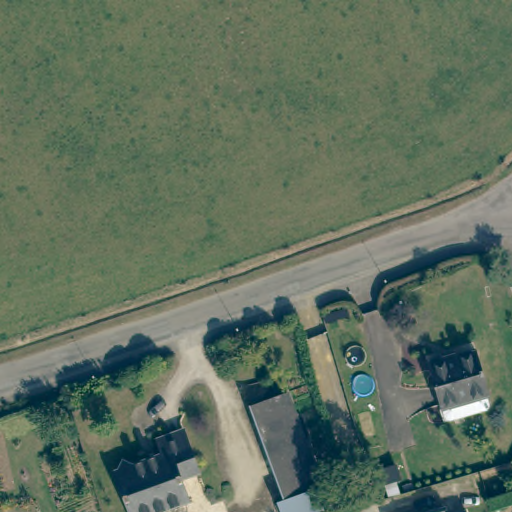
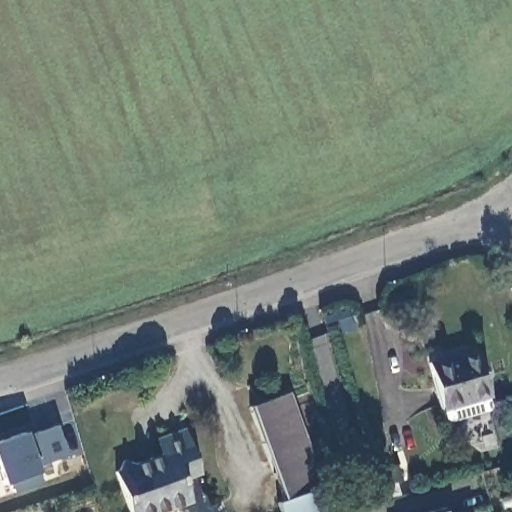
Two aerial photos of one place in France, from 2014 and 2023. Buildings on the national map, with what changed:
unchanged [(489,400),(488,400),(485,402),(452,412),(447,411),(444,410),(443,398),(440,400),(439,397),(434,380),(427,355),(443,351),(444,355),(477,345),(488,386),(486,386),(489,398),(489,400)]
unchanged [(322,487),(325,486),(331,503),(307,512),(280,512),(277,504),(284,501),(250,406),(288,393),(322,487)]
new [(58,421),(71,456),(39,465),(46,485),(17,494),(14,486),(7,488),(0,471),(0,440),(58,421)]
unchanged [(198,473),(181,480),(189,502),(163,512),(128,512),(114,472),(117,472),(122,461),(134,466),(162,456),(157,441),(183,431),(198,473)]
unchanged [(444,510),(445,512),(437,512),(444,510)]
unchanged [(463,511),(463,512),(462,512),(463,511)]

